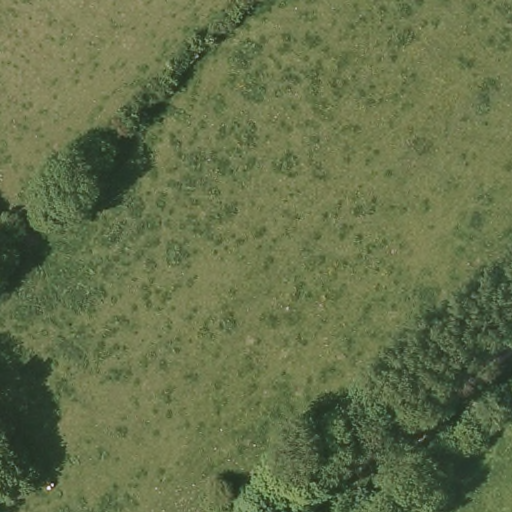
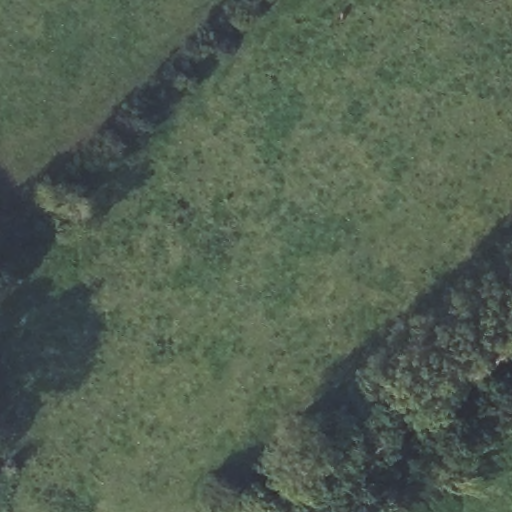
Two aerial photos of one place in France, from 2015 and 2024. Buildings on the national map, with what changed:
[]

